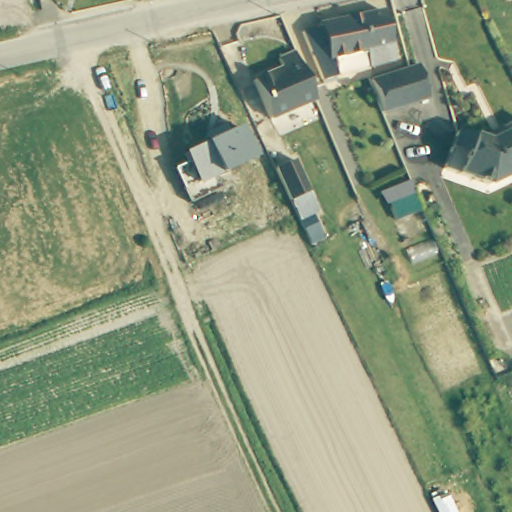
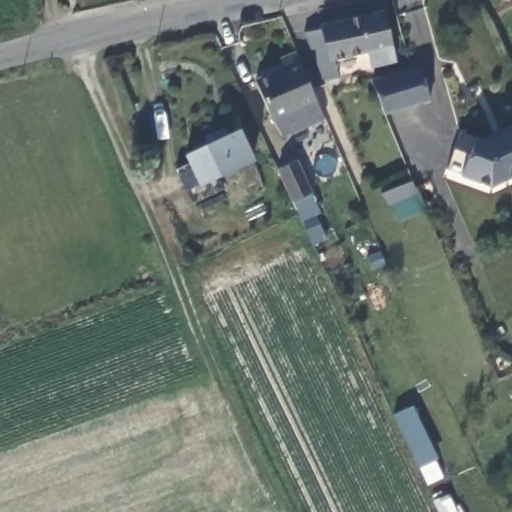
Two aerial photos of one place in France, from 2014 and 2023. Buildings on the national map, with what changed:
unchanged [(369,51),(336,59),(341,76),(327,80),(307,32),(324,28),(323,24),(386,10),(398,61),(373,67),(369,51)]
unchanged [(256,76),(281,67),(279,58),(294,53),(315,104),(272,121),(256,76)]
unchanged [(413,67),(427,63),(439,96),(387,112),(373,79),(413,67)]
unchanged [(450,171),(463,133),(492,143),(510,134),(507,129),(512,127),(512,177),(494,186),(450,171)]
unchanged [(219,192),(186,204),(174,169),(187,164),(182,152),(204,144),(241,128),(254,161),(219,176),(210,180),(219,192)]
unchanged [(300,222),(277,170),(295,161),(319,212),(314,215),(326,239),(310,247),(300,222)]
unchanged [(404,232),(389,196),(414,185),(429,221),(404,232)]
new [(407,408),(433,462),(420,468),(393,416),(407,408)]

